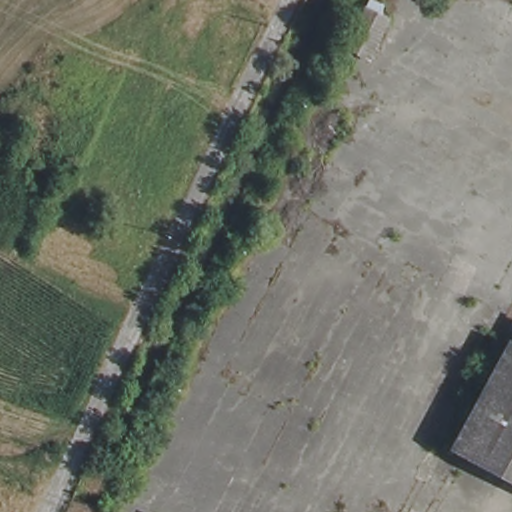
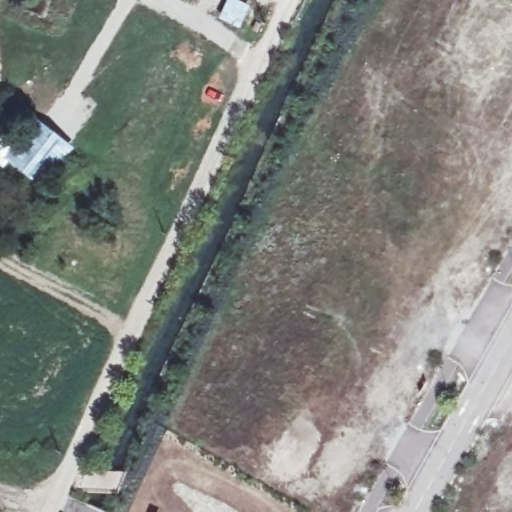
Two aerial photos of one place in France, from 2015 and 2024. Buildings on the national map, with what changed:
demolished [(371,55),(348,44),(368,5),(391,16),(371,55)]
new [(68,158),(64,155),(40,185),(11,162),(41,124),(75,149),(68,158)]
demolished [(507,342),(512,345),(512,484),(448,448),(507,342)]

